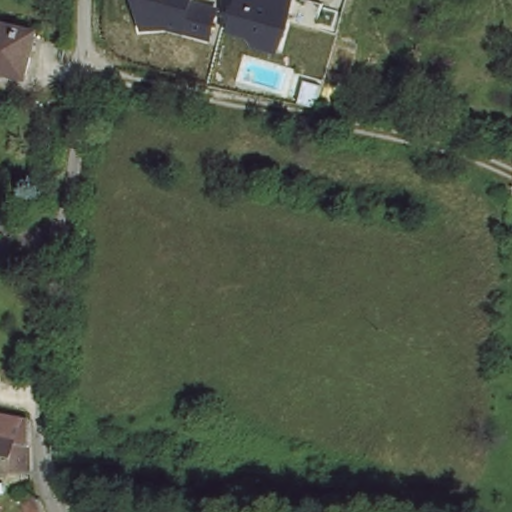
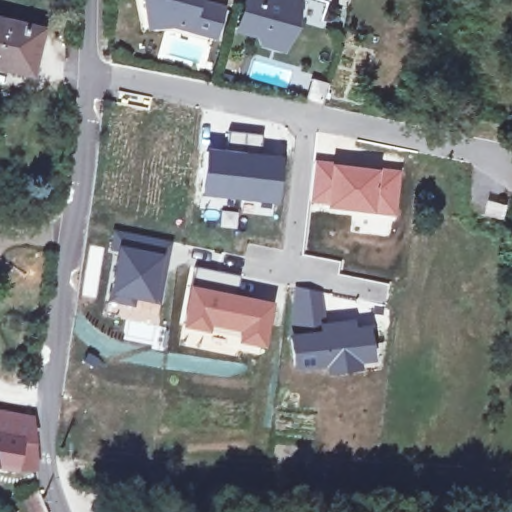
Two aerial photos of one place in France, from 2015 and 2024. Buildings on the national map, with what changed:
unchanged [(198,0),(222,6),(216,37),(192,31),(165,27),(150,31),(140,0),(198,0)]
unchanged [(285,51),(260,46),(258,37),(234,30),(243,0),(299,0),(285,51)]
unchanged [(24,71),(0,66),(0,21),(40,30),(35,53),(30,74),(24,71)]
new [(205,151),(225,154),(227,131),(260,136),(258,156),(279,160),(273,201),(200,193),(205,151)]
new [(314,160),(402,170),(395,217),(325,208),(325,205),(308,203),(314,160)]
new [(119,249),(110,247),(115,230),(169,241),(165,258),(156,256),(153,270),(162,272),(157,300),(132,295),(130,303),(109,298),(119,249)]
new [(194,266),(240,275),(235,298),(267,305),(259,345),(238,340),(239,336),(182,324),(194,266)]
new [(295,286),(324,291),(326,320),(289,325),(295,286)]
new [(326,320),(354,316),(355,324),(366,323),(370,357),(353,368),(319,367),(289,368),(289,325),(326,320)]
unchanged [(26,418),(29,469),(9,470),(0,468),(0,415),(26,418)]
unchanged [(47,512),(29,512),(20,493),(35,485),(47,512)]
unchanged [(106,492),(115,497),(108,511),(99,506),(106,492)]

